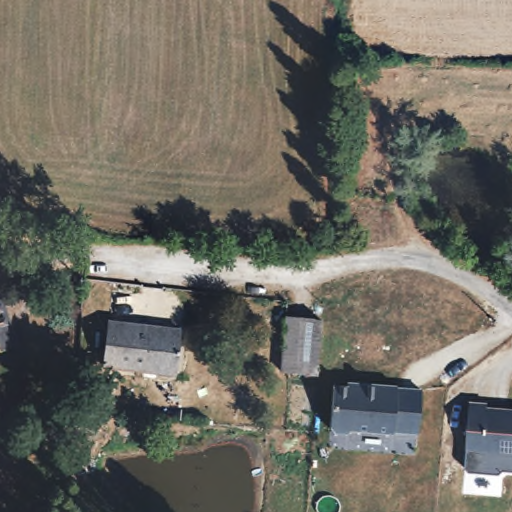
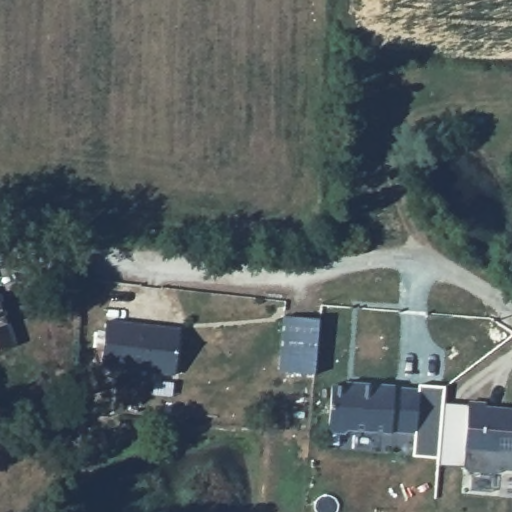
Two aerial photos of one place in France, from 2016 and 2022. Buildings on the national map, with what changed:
unchanged [(11,344),(0,348),(0,313),(11,344)]
unchanged [(317,319),(312,373),(280,371),(284,316),(317,319)]
unchanged [(177,329),(172,375),(100,368),(104,322),(177,329)]
unchanged [(360,392),(360,388),(397,391),(397,393),(422,395),(417,439),(392,437),(392,438),(351,434),(347,438),(333,437),(330,432),(334,389),(360,392)]
unchanged [(487,410),(512,412),(512,455),(466,451),(471,404),(488,406),(487,410)]
unchanged [(499,475),(463,472),(466,451),(512,455),(512,471),(500,470),(499,475)]

